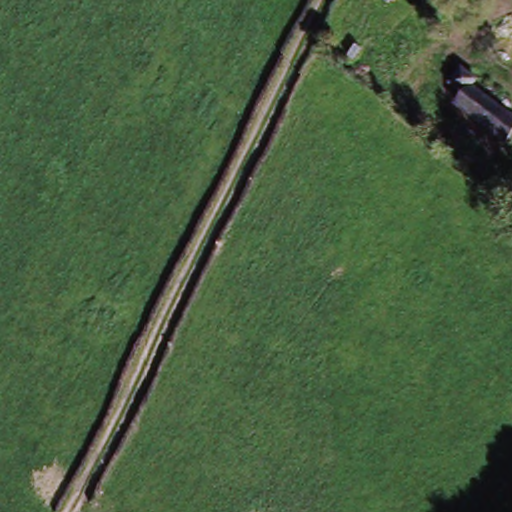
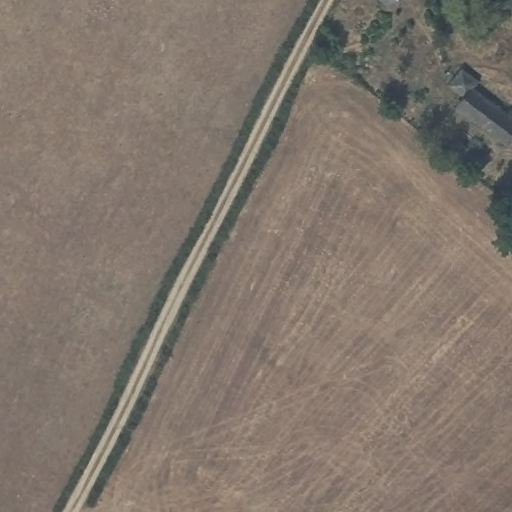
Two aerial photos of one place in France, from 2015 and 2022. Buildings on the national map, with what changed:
unchanged [(384,0),(390,0),(387,3),(384,0)]
unchanged [(512,66),(510,68),(479,39),(511,11),(512,11),(512,66)]
unchanged [(455,109),(463,99),(446,86),(458,70),(475,84),(468,92),(512,127),(512,132),(502,146),(455,109)]

